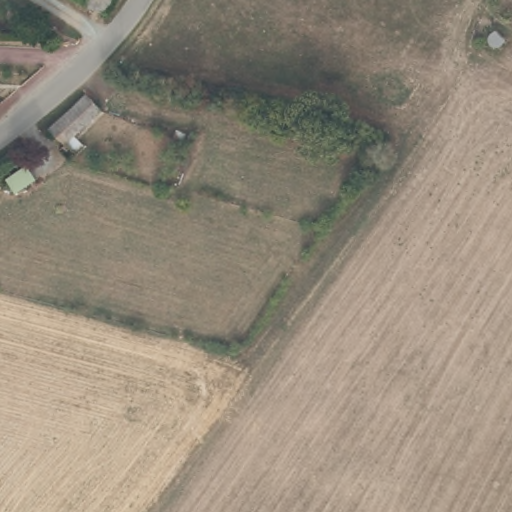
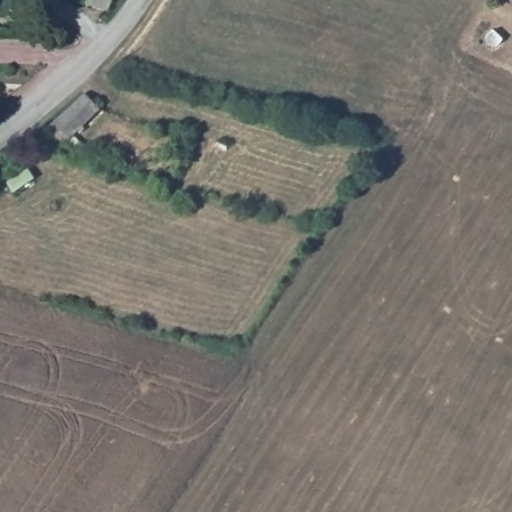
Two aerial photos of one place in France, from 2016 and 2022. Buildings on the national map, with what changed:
unchanged [(78,6),(81,0),(108,0),(101,15),(78,6)]
unchanged [(85,93),(100,110),(61,143),(45,126),(85,93)]

